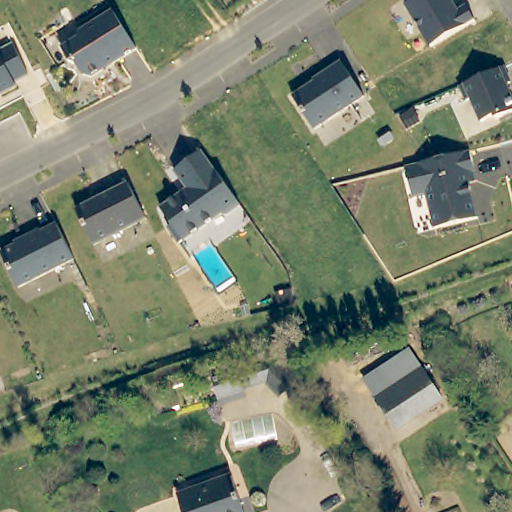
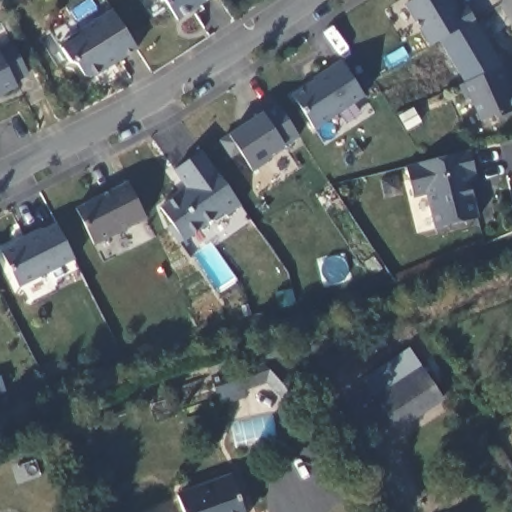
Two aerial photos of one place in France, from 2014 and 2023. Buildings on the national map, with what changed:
new [(178,21),(163,0),(210,0),(178,21)]
unchanged [(456,10),(465,5),(473,19),(440,39),(430,45),(404,3),(409,0),(450,0),(456,10)]
unchanged [(120,23),(135,47),(89,76),(82,74),(75,62),(68,61),(58,45),(74,35),(76,28),(110,7),(120,23)]
unchanged [(26,74),(13,81),(15,86),(0,94),(0,48),(10,42),(26,74)]
unchanged [(363,95),(313,128),(291,95),(314,80),(312,78),(340,60),(363,95)]
unchanged [(468,83),(504,69),(510,85),(506,86),(512,103),(512,114),(495,121),(494,117),(480,123),(470,99),(466,101),(460,86),(468,83)]
new [(299,137),(249,168),(240,155),(232,158),(219,138),(226,135),(262,110),(265,114),(279,104),(299,137)]
unchanged [(424,160),(469,149),(474,170),(464,173),(466,182),(468,181),(477,217),(434,227),(425,193),(412,196),(405,165),(424,160)]
unchanged [(160,206),(180,191),(187,186),(174,169),(201,150),(239,203),(226,213),(220,212),(179,241),(168,225),(172,222),(160,206)]
unchanged [(126,182),(129,186),(145,217),(93,244),(75,208),(126,182)]
unchanged [(23,237),(39,229),(40,231),(55,223),(73,258),(16,287),(0,254),(0,251),(24,239),(23,237)]
unchanged [(362,380),(407,349),(420,369),(375,399),(362,380)]
unchanged [(277,361),(294,383),(279,396),(265,381),(259,361),(277,361)]
unchanged [(420,369),(440,398),(394,430),(375,399),(420,369)]
unchanged [(243,512),(183,512),(177,495),(231,476),(243,512)]

